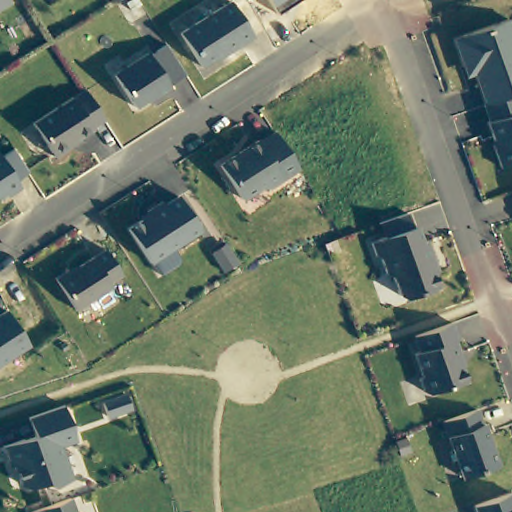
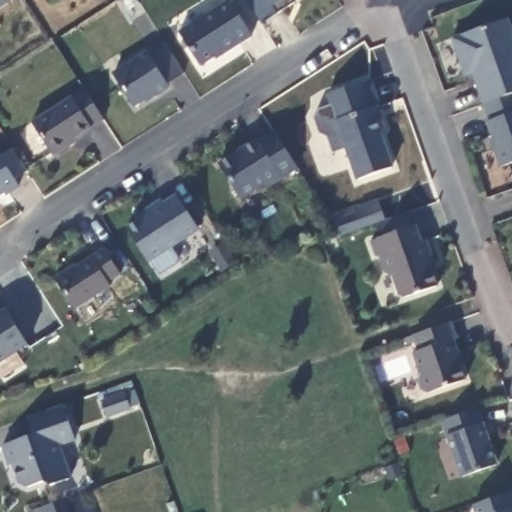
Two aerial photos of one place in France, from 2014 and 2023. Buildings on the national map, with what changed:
unchanged [(230,0),(249,30),(221,48),(220,45),(197,60),(176,27),(218,0),(230,0)]
unchanged [(268,0),(301,0),(278,15),(268,0)]
unchanged [(459,61),(449,32),(505,14),(512,35),(512,87),(481,98),(470,68),(462,70),(459,61)]
unchanged [(144,47),(166,81),(152,90),(151,88),(130,101),(110,70),(144,47)]
new [(345,149),(333,153),(327,137),(320,134),(314,117),(318,110),(330,105),(325,95),(372,77),(385,110),(380,112),(385,124),(381,135),(395,167),(356,181),(345,149)]
unchanged [(89,124),(65,140),(66,141),(50,151),(29,117),(69,92),(70,93),(82,85),(101,114),(89,123),(89,124)]
unchanged [(491,144),(493,142),(483,116),(486,115),(480,99),(481,98),(512,87),(512,156),(497,161),(491,144)]
unchanged [(255,135),(256,136),(271,126),(275,133),(295,162),(265,181),(257,180),(238,193),(216,160),(255,135)]
unchanged [(23,164),(25,166),(12,175),(16,181),(3,190),(0,185),(0,150),(10,144),(23,164)]
unchanged [(175,191),(196,225),(146,257),(124,224),(145,210),(143,206),(159,196),(161,200),(175,191)]
unchanged [(420,236),(424,235),(430,254),(426,255),(435,281),(402,293),(395,290),(389,271),(382,267),(377,252),(372,250),(368,236),(380,232),(375,217),(403,207),(408,221),(413,220),(420,236)]
unchanged [(117,270),(105,277),(107,282),(71,305),(51,273),(65,265),(65,267),(101,245),(117,270)]
unchanged [(0,308),(3,306),(25,340),(0,356),(0,308)]
unchanged [(455,333),(451,335),(456,350),(455,351),(463,375),(425,388),(420,385),(415,374),(418,368),(411,347),(416,346),(411,330),(442,319),(449,316),(455,333)]
unchanged [(128,403),(105,411),(99,397),(123,389),(128,403)]
unchanged [(56,441),(68,474),(49,481),(41,477),(25,483),(17,480),(11,460),(7,461),(0,441),(20,434),(31,430),(25,412),(26,412),(60,400),(73,435),(56,441)]
unchanged [(473,403),(479,418),(480,418),(494,460),(460,471),(440,415),(473,403)]
unchanged [(503,488),(508,486),(512,498),(512,512),(476,512),(471,500),(503,488)]
unchanged [(27,507),(66,493),(73,512),(29,512),(27,507)]

